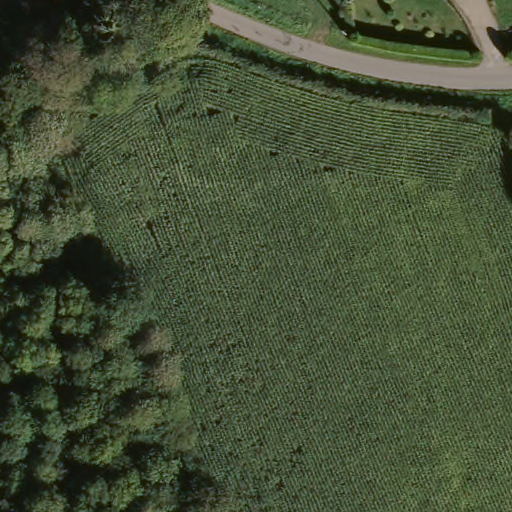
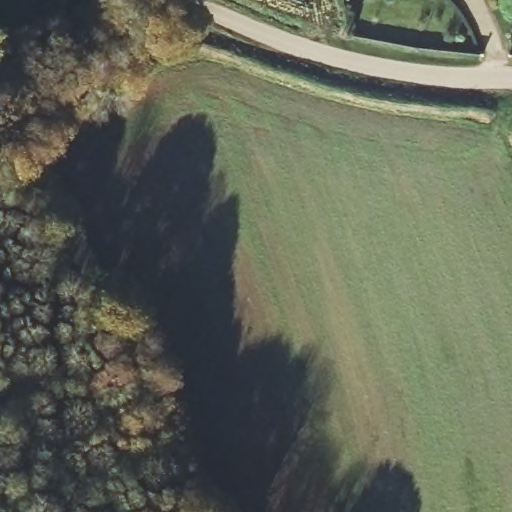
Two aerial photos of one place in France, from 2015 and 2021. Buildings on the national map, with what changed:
unchanged [(30,0),(29,2),(26,0),(30,0)]

